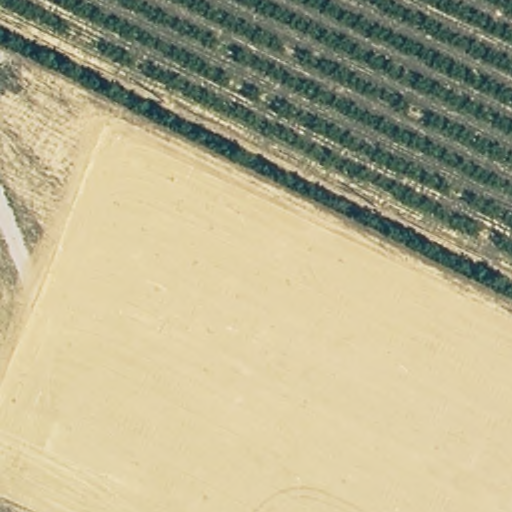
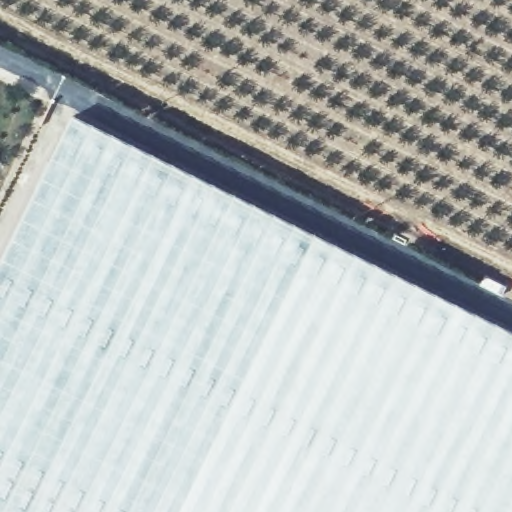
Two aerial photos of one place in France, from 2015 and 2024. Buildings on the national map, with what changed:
new [(72,117),(512,333),(512,512),(0,512),(0,263),(72,117)]
demolished [(491,512),(512,471),(512,512),(491,512)]

